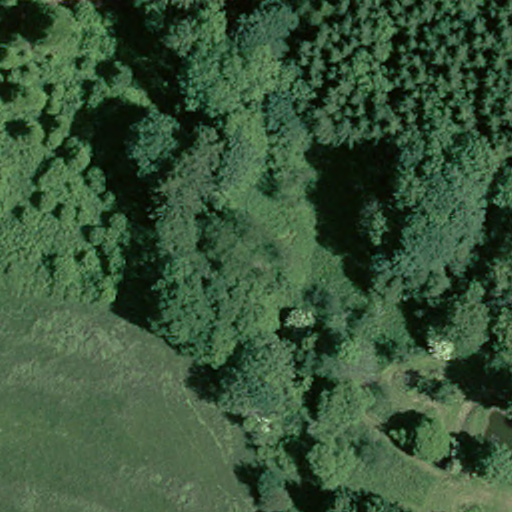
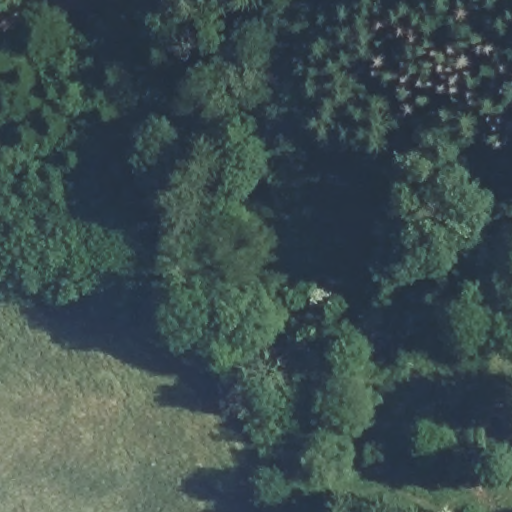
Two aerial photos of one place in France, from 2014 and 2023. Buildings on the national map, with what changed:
[]

